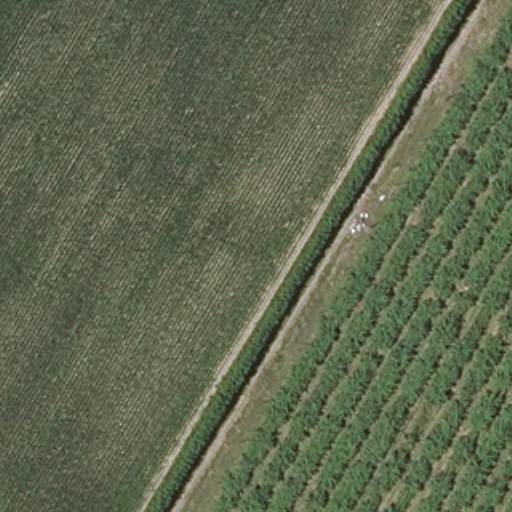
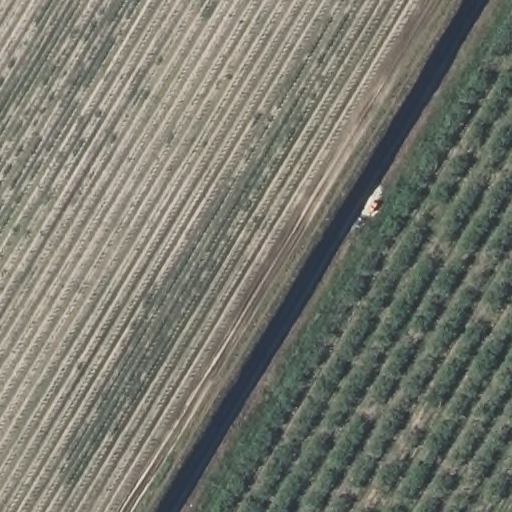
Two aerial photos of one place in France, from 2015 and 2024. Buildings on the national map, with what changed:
[]

